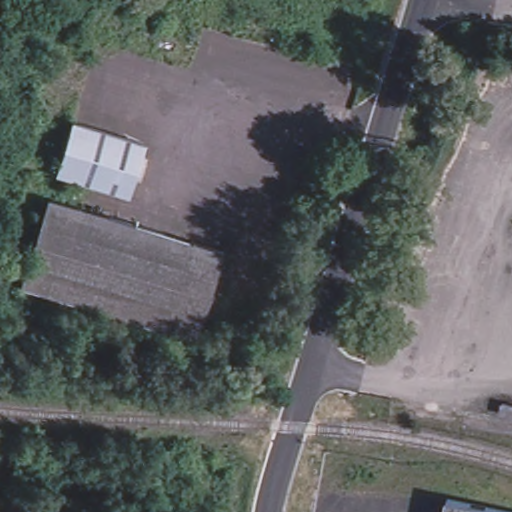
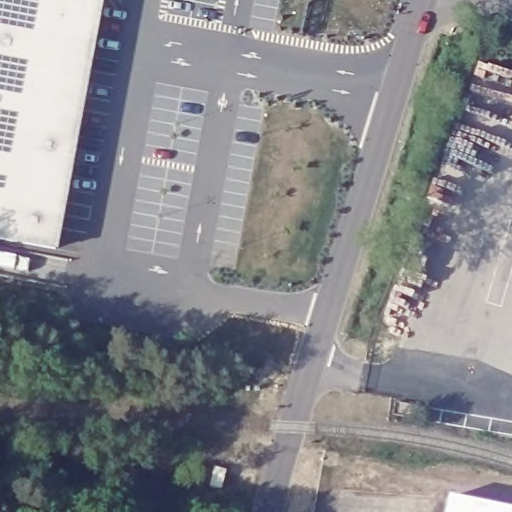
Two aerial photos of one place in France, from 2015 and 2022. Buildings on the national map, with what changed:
new [(57,251),(0,241),(0,0),(103,0),(57,251)]
demolished [(125,202),(52,180),(68,127),(142,150),(125,202)]
demolished [(224,251),(197,341),(22,288),(50,199),(224,251)]
unchanged [(512,410),(512,413),(511,421),(497,419),(499,407),(512,410)]
unchanged [(512,426),(512,442),(463,433),(465,418),(512,426)]
unchanged [(509,512),(441,512),(445,498),(509,512)]

